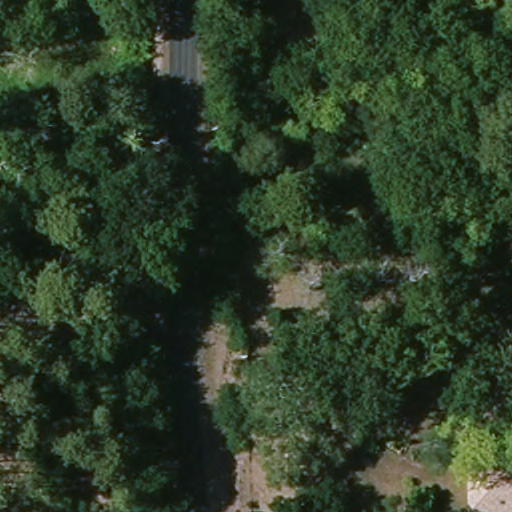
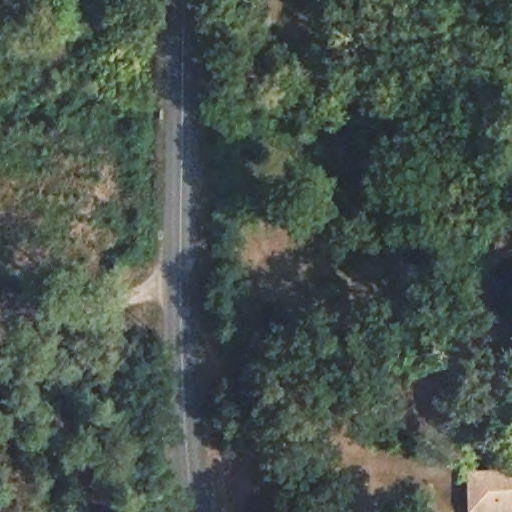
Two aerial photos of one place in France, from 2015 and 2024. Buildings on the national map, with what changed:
unchanged [(475,512),(476,470),(512,471),(512,512),(475,512)]

